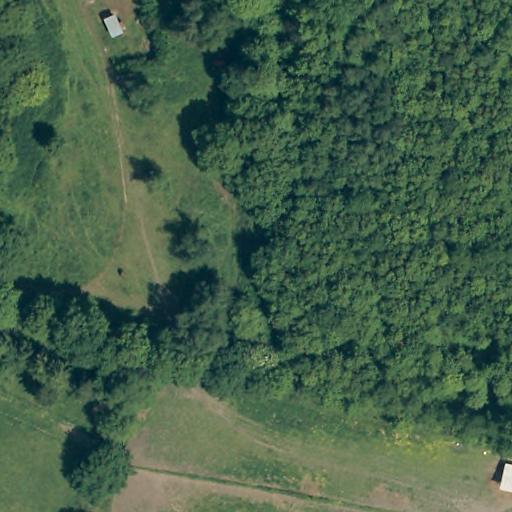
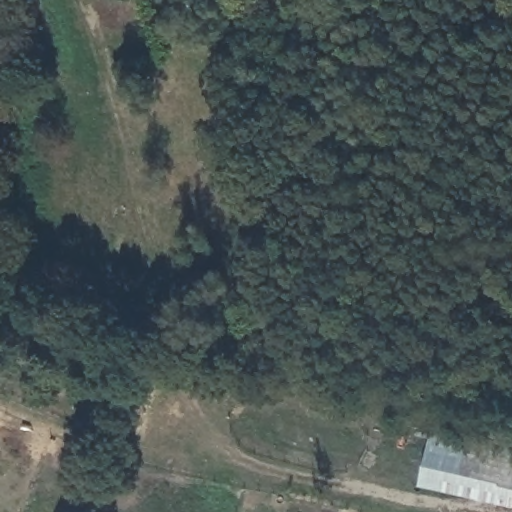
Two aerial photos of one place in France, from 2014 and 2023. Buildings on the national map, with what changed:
new [(443,481),(440,492),(419,487),(428,445),(512,463),(512,498),(443,481)]

